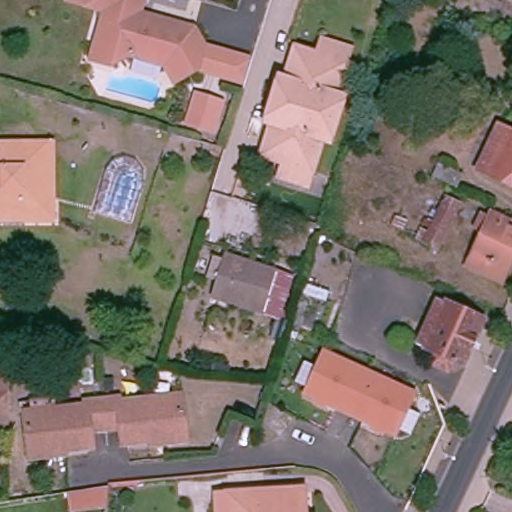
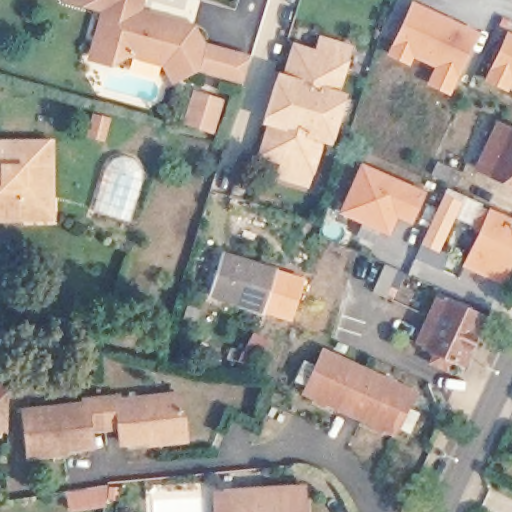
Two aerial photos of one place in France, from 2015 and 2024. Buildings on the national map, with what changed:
unchanged [(160,19),(194,28),(204,48),(197,68),(175,80),(166,63),(134,54),(120,65),(97,39),(105,7),(88,2),(89,0),(141,0),(138,12),(150,15),(160,19)]
new [(412,0),(479,31),(448,95),(424,83),(432,67),(413,57),(408,66),(385,54),(412,0)]
new [(512,34),(512,83),(508,92),(483,81),(506,31),(512,34)]
unchanged [(268,120),(283,76),(288,78),(298,47),(319,54),(324,39),(352,49),(337,94),(345,96),(331,140),(323,138),(308,184),(280,175),(285,160),(264,153),(274,122),(268,120)]
unchanged [(253,64),(246,84),(197,68),(204,48),(253,64)]
new [(215,130),(205,128),(188,123),(197,94),(213,99),(223,101),(215,130)]
unchanged [(492,174),(479,168),(501,124),(512,130),(512,183),(492,174)]
unchanged [(20,209),(0,208),(0,142),(47,144),(44,203),(45,204),(52,204),(51,221),(40,221),(19,220),(20,209)]
unchanged [(104,173),(111,163),(123,160),(135,164),(143,174),(142,186),(128,227),(89,213),(104,173)]
new [(425,191),(411,223),(397,217),(389,235),(338,213),(361,162),(425,191)]
unchanged [(439,162),(465,175),(459,187),(433,174),(439,162)]
unchanged [(447,196),(460,203),(439,247),(425,241),(447,196)]
unchanged [(0,208),(20,209),(19,220),(0,219),(0,208)]
unchanged [(478,225),(484,213),(491,216),(493,212),(512,220),(512,261),(503,279),(469,263),(485,228),(478,225)]
unchanged [(226,253),(278,269),(264,309),(213,292),(226,253)]
unchanged [(426,324),(439,299),(446,302),(448,302),(448,300),(485,318),(464,363),(454,359),(452,363),(436,355),(438,350),(428,345),(418,340),(426,324)]
unchanged [(311,382),(326,350),(415,391),(397,432),(371,420),(307,390),(311,382)]
unchanged [(10,411),(10,425),(0,425),(0,385),(10,385),(10,411)]
unchanged [(52,449),(51,444),(29,446),(25,403),(87,397),(86,392),(103,390),(119,388),(119,394),(180,389),(184,433),(165,434),(165,440),(153,440),(153,435),(124,438),(122,421),(106,423),(91,424),(92,441),(63,443),(64,448),(52,449)]
new [(103,486),(100,505),(67,509),(66,492),(103,486)]
unchanged [(218,497),(233,496),(257,494),(257,497),(301,494),(303,512),(219,512),(218,497)]

